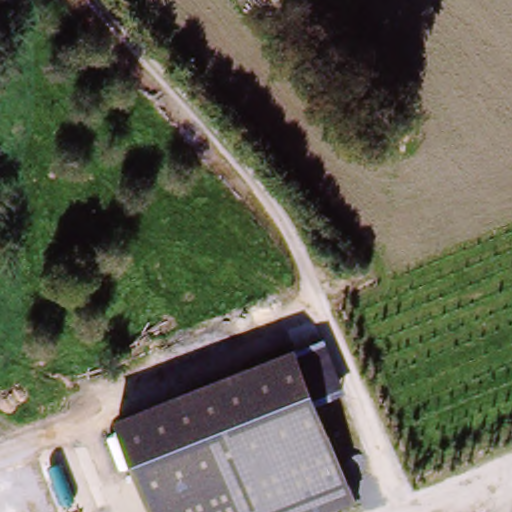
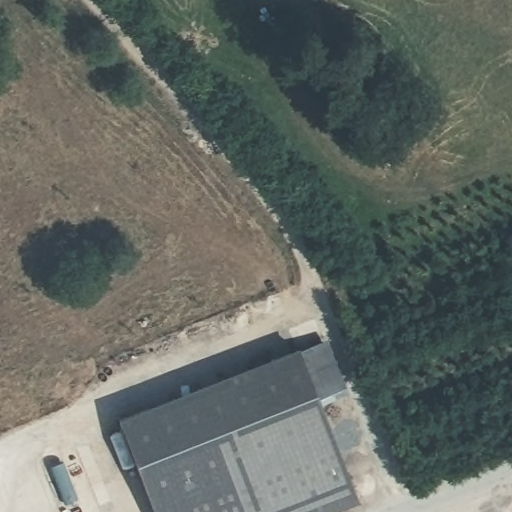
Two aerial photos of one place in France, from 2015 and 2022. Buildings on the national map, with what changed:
unchanged [(350,404),(317,417),(355,508),(346,512),(146,512),(114,425),(297,352),(331,344),(350,404)]

